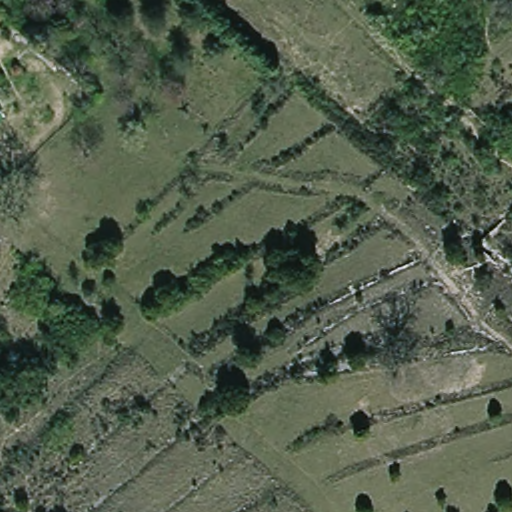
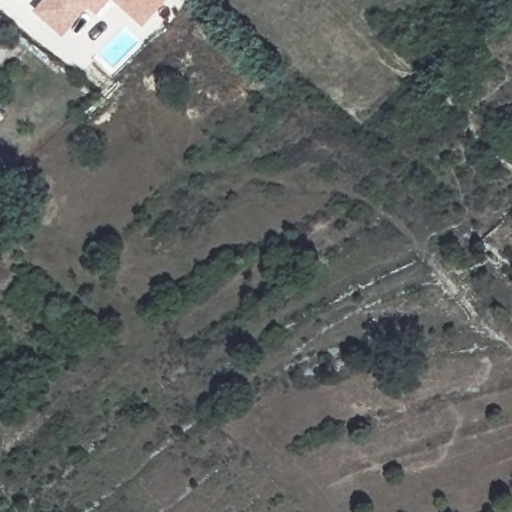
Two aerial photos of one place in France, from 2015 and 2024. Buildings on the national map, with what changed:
new [(88,8),(62,37),(33,11),(43,0),(109,0),(96,15),(88,8)]
new [(112,0),(167,0),(143,27),(112,0)]
unchanged [(44,67),(52,60),(60,66),(50,74),(44,67)]

